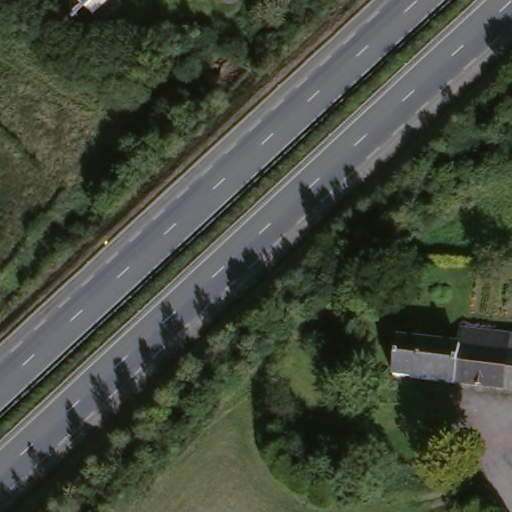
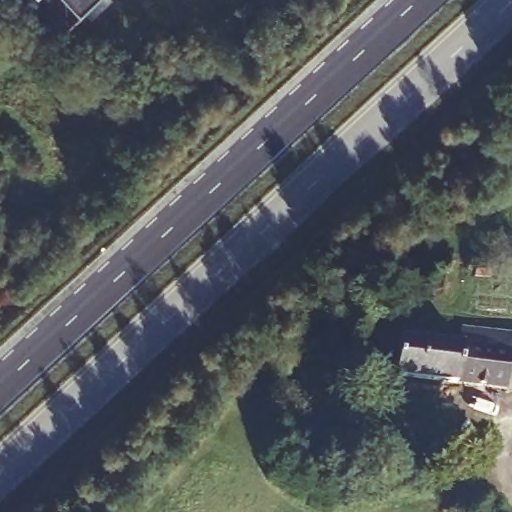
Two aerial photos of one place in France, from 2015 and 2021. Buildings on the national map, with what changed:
unchanged [(88,15),(73,0),(103,0),(88,15)]
unchanged [(500,390),(452,384),(390,376),(394,339),(452,346),(457,330),(507,336),(512,336),(512,392),(500,390)]

